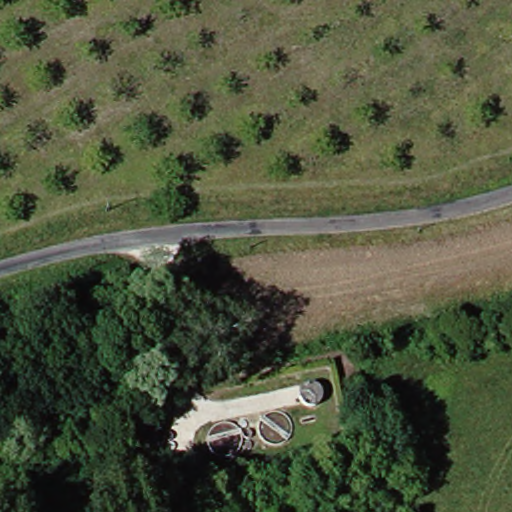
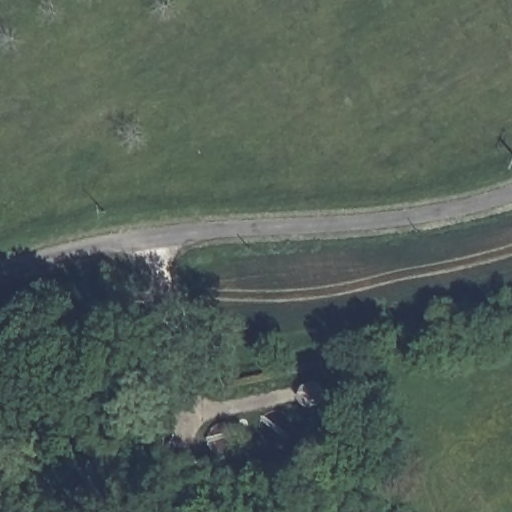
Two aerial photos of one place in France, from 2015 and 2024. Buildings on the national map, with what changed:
unchanged [(298,392),(302,387),(309,386),(315,387),(320,392),(321,403),(316,408),(310,411),(303,409),(298,405),(297,398),(298,392)]
unchanged [(142,461),(168,456),(172,467),(146,472),(142,461)]

